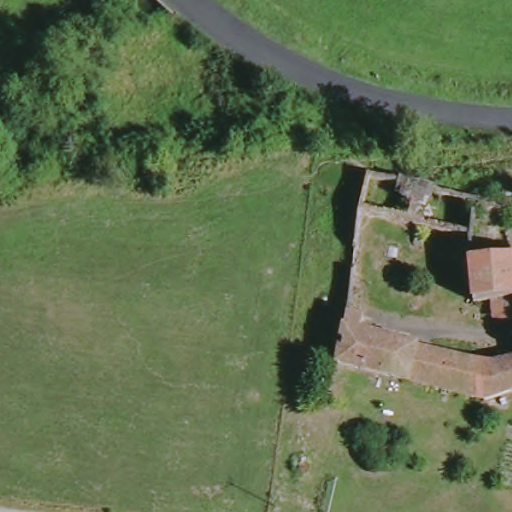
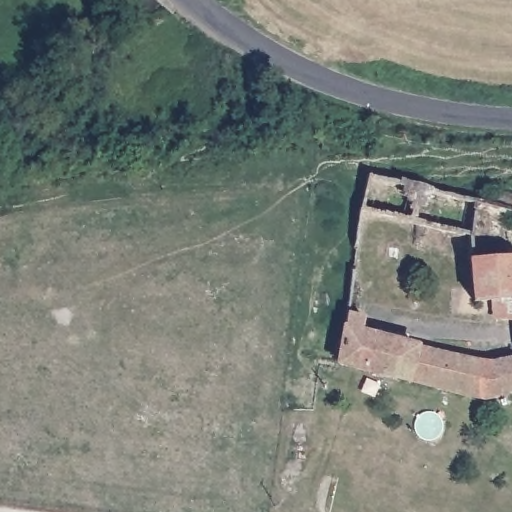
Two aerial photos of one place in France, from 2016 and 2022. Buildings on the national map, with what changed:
unchanged [(502,312),(497,296),(480,299),(477,258),(512,255),(512,316),(502,312)]
unchanged [(490,401),(346,364),(352,318),(368,321),(368,324),(383,329),(380,338),(457,358),(495,364),(512,361),(512,393),(490,401)]

